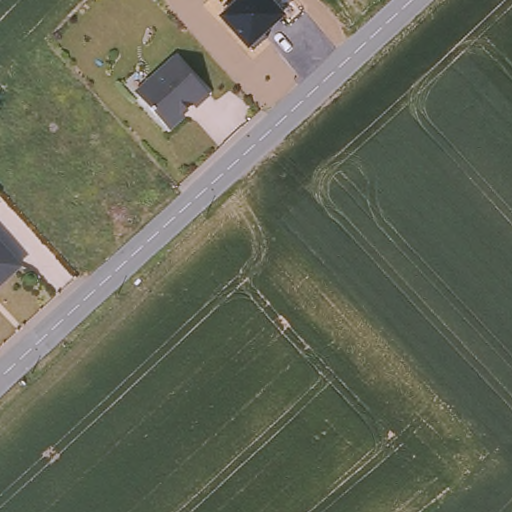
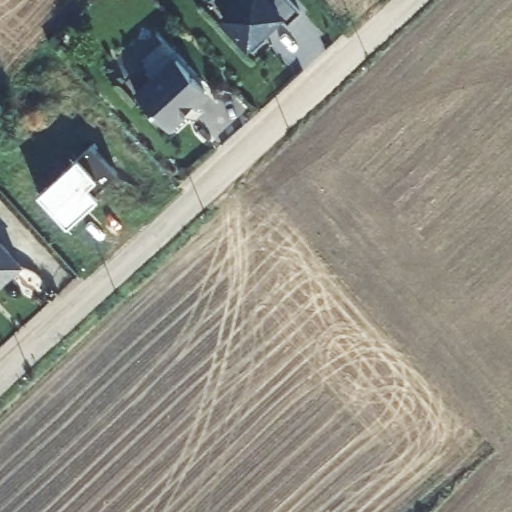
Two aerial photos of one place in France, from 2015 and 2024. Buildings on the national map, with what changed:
unchanged [(237,0),(270,0),(284,14),(246,49),(218,18),(237,0)]
unchanged [(213,86),(191,109),(193,111),(178,125),(146,94),(183,56),(213,86)]
new [(79,212),(83,216),(66,231),(38,199),(89,151),(116,179),(79,212)]
unchanged [(16,269),(0,284),(0,253),(16,269)]

